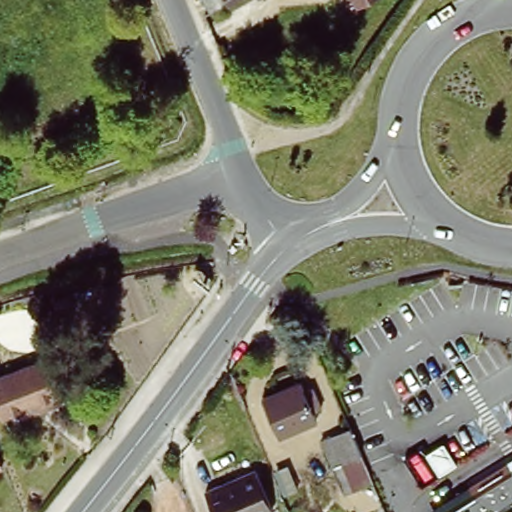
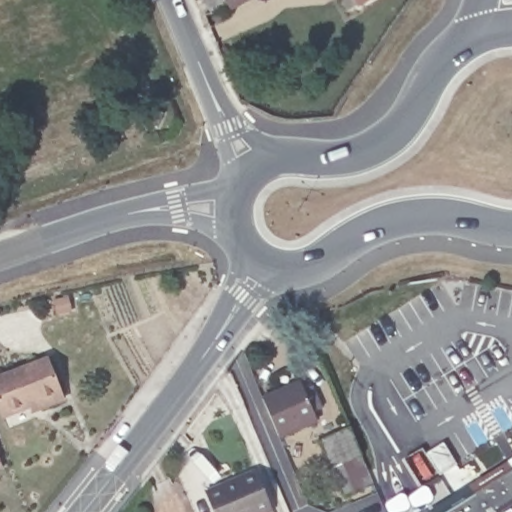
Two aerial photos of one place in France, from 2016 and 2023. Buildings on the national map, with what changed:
unchanged [(355,0),(374,0),(360,8),(355,0)]
unchanged [(27,397),(2,407),(0,401),(0,367),(40,351),(63,401),(36,412),(27,397)]
unchanged [(304,383),(320,420),(283,437),(267,399),(304,383)]
unchanged [(367,456),(352,462),(362,487),(347,495),(324,440),(355,428),(367,456)]
unchanged [(435,507),(512,459),(512,512),(438,512),(435,507)]
unchanged [(257,463),(273,503),(252,512),(220,512),(209,485),(257,463)]

